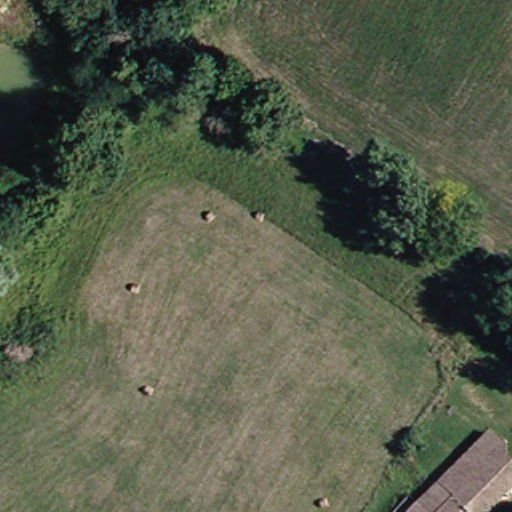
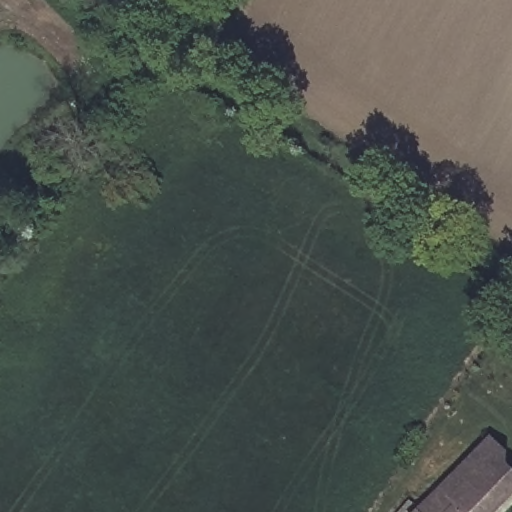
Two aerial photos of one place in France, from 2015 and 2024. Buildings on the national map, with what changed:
unchanged [(502,472),(496,477),(481,458),(504,439),(512,449),(512,485),(502,472)]
unchanged [(418,512),(481,458),(496,477),(502,472),(512,485),(512,501),(499,512),(418,512)]

